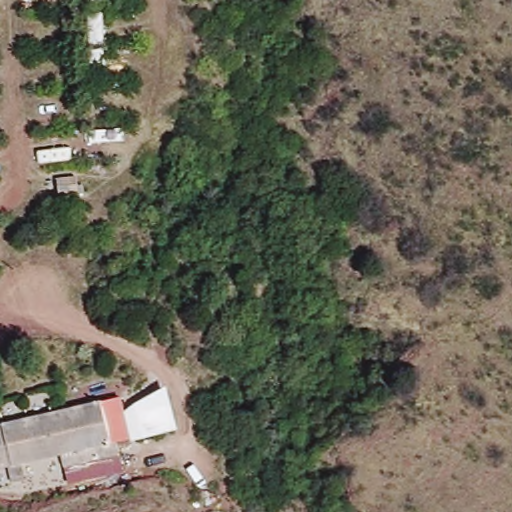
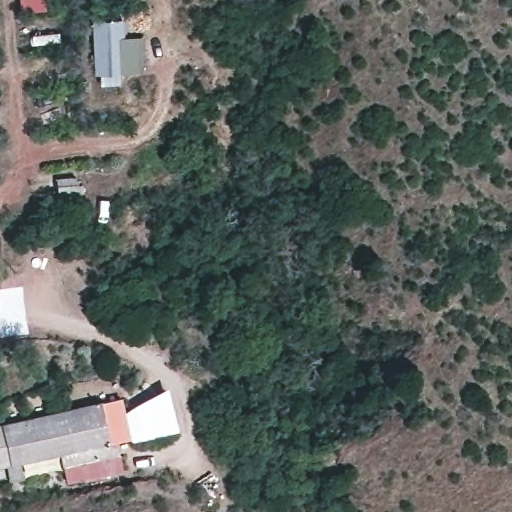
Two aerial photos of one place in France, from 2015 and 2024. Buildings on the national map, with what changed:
new [(99,0),(120,0),(100,2),(99,0)]
new [(143,37),(145,75),(95,77),(93,22),(121,21),(123,37),(143,37)]
unchanged [(16,462),(20,478),(11,480),(7,465),(0,466),(0,422),(47,412),(116,396),(127,437),(105,442),(107,454),(76,461),(60,465),(56,453),(16,462)]
unchanged [(171,427),(143,436),(138,411),(165,402),(171,427)]

